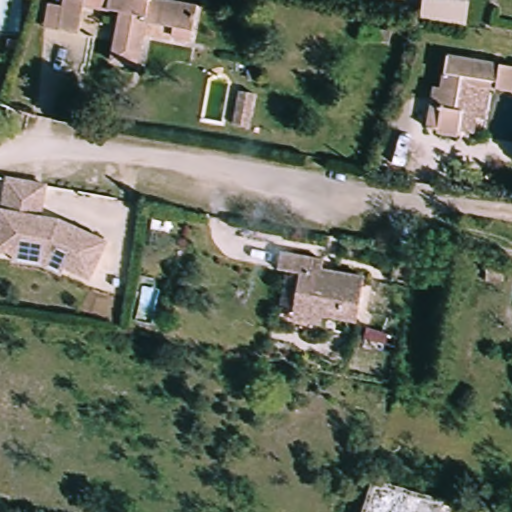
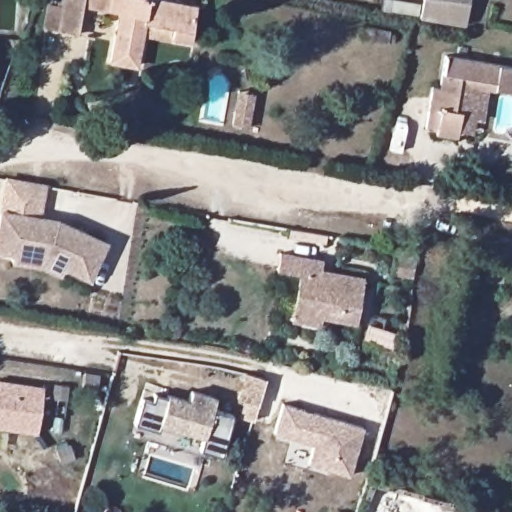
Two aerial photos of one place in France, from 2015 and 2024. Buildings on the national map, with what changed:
unchanged [(64,0),(110,0),(107,15),(81,10),(77,36),(40,28),(45,1),(63,5),(64,0)]
unchanged [(134,69),(110,64),(119,17),(107,15),(110,0),(149,0),(195,9),(188,42),(167,38),(165,43),(140,38),(134,69)]
unchanged [(432,21),(423,20),(425,0),(470,0),(467,28),(432,21)]
unchanged [(512,67),(512,91),(499,89),(465,83),(455,125),(445,126),(428,121),(425,121),(435,81),(440,82),(447,56),(512,67)]
unchanged [(445,126),(455,125),(465,83),(499,89),(491,124),(483,123),(482,131),(479,136),(474,141),(462,144),(451,144),(443,143),(438,140),(432,136),(429,130),(428,121),(445,126)]
unchanged [(255,133),(234,130),(240,93),(261,97),(255,133)]
unchanged [(16,265),(17,257),(0,254),(0,239),(10,183),(46,190),(41,222),(60,225),(107,247),(92,282),(47,262),(45,270),(16,265)]
unchanged [(266,251),(313,258),(312,268),(345,274),(340,316),(276,308),(281,274),(263,271),(266,251)]
unchanged [(496,274),(477,275),(476,263),(496,261),(496,274)]
new [(243,376),(265,380),(256,407),(237,401),(243,376)]
new [(34,390),(42,391),(41,399),(37,435),(7,432),(0,431),(0,386),(34,390)]
new [(143,402),(152,404),(155,397),(167,401),(168,399),(190,405),(192,394),(216,401),(213,411),(235,417),(222,458),(201,452),(205,439),(161,427),(160,434),(135,428),(143,402)]
new [(276,436),(285,407),(365,431),(350,479),(332,473),(330,479),(287,465),(293,446),(278,442),(280,437),(276,436)]

